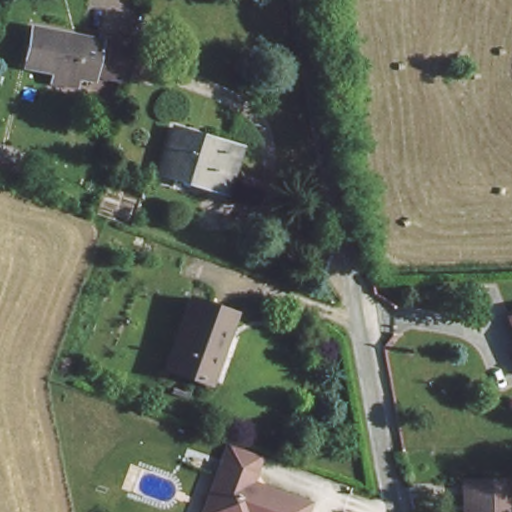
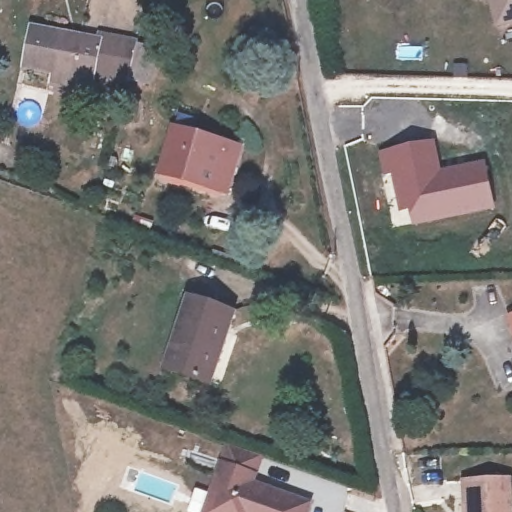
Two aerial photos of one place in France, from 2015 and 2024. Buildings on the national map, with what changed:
new [(489,0),(512,0),(512,23),(497,27),(489,0)]
unchanged [(46,83),(47,70),(20,67),(24,30),(89,37),(89,32),(127,35),(124,71),(124,72),(88,70),(88,75),(67,72),(67,85),(46,83)]
unchanged [(226,190),(160,167),(173,127),(239,150),(226,190)]
new [(495,209),(414,225),(410,210),(400,211),(392,174),(385,175),(380,152),(435,141),(442,170),(485,162),(495,209)]
unchanged [(213,351),(221,354),(213,378),(164,361),(187,293),(229,308),(213,351)]
unchanged [(511,343),(500,321),(512,314),(512,343),(511,343)]
unchanged [(210,491),(228,441),(262,455),(252,480),(311,503),(307,512),(202,512),(210,491)]
unchanged [(510,482),(510,512),(464,512),(464,500),(462,481),(510,482)]

